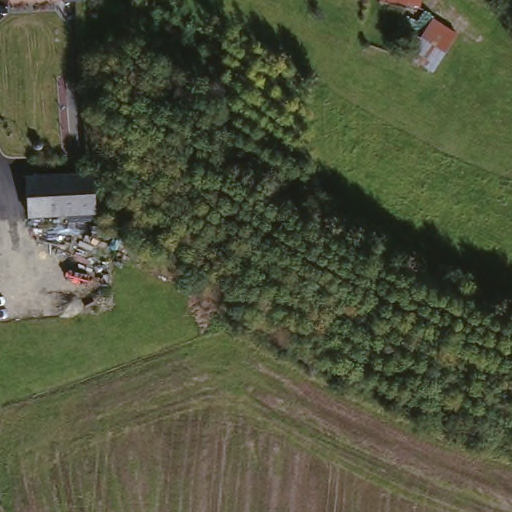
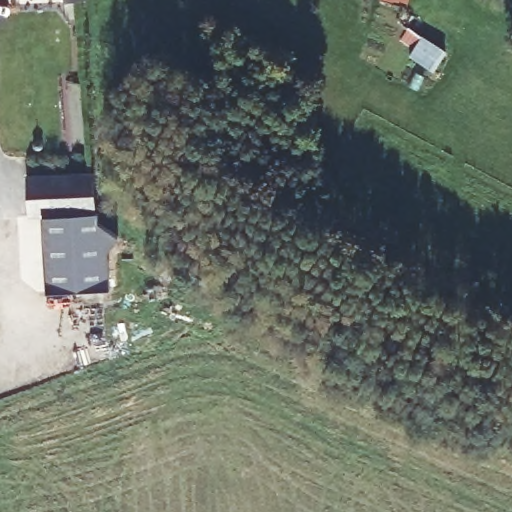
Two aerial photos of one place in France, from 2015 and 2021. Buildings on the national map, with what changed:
unchanged [(62,6),(62,0),(79,0),(80,5),(62,6)]
unchanged [(382,10),(385,0),(414,0),(408,18),(382,10)]
unchanged [(448,50),(447,61),(447,64),(435,79),(412,68),(411,66),(411,58),(401,53),(396,53),(402,42),(403,41),(411,30),(448,50)]
unchanged [(32,224),(29,180),(91,176),(94,220),(32,224)]
new [(94,220),(117,237),(107,251),(109,289),(46,292),(42,223),(94,220)]

